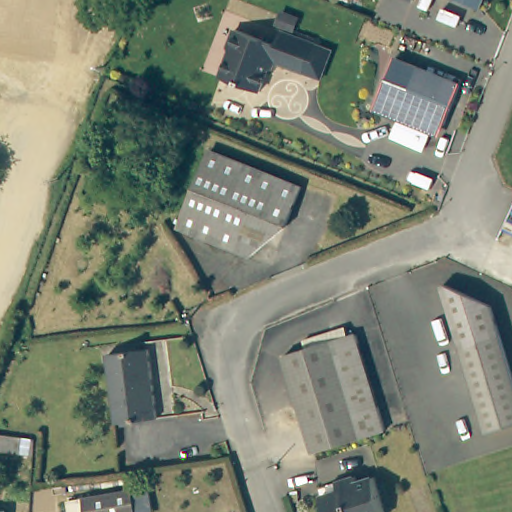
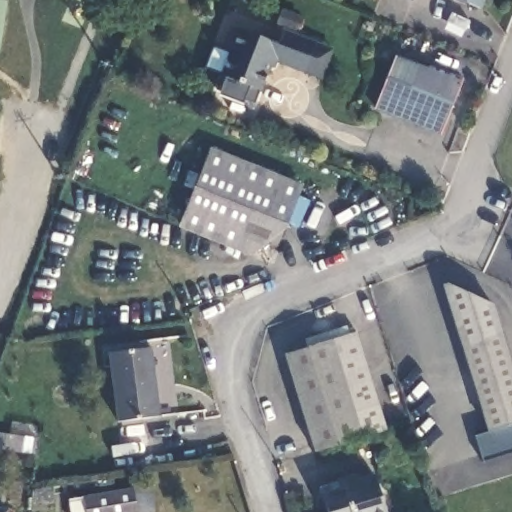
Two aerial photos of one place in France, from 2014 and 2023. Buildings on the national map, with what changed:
unchanged [(462,0),(483,0),(480,8),(462,0)]
unchanged [(321,77),(305,70),(273,57),(260,89),(222,73),(232,49),(230,44),(238,26),(278,42),(283,29),(316,43),(333,49),(321,77)]
unchanged [(397,109),(386,115),(370,109),(391,57),(451,81),(452,78),(458,80),(440,126),(397,109)]
unchanged [(297,186),(283,221),(250,253),(181,226),(211,151),(297,186)]
unchanged [(512,376),(512,430),(490,437),(440,292),(443,291),(489,309),(512,376)]
unchanged [(304,458),(273,362),(295,356),(292,346),(332,335),(335,344),(344,341),(366,411),(374,436),(304,458)]
unchanged [(171,414),(111,426),(97,357),(140,350),(157,346),(171,414)]
unchanged [(33,456),(0,451),(0,433),(34,437),(33,456)]
unchanged [(380,512),(334,512),(325,492),(338,487),(336,479),(348,475),(350,479),(368,474),(380,512)]
unchanged [(137,512),(84,512),(81,501),(132,490),(137,512)]

